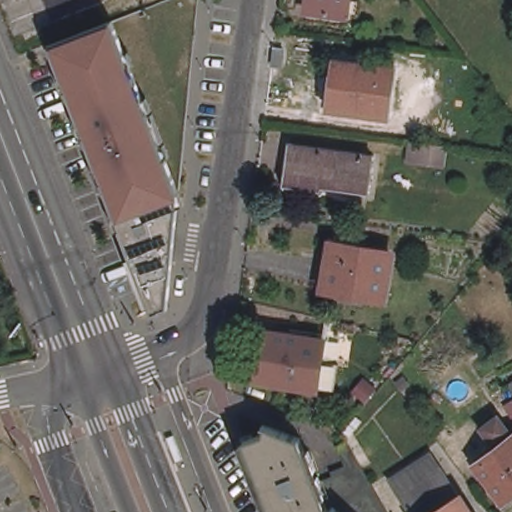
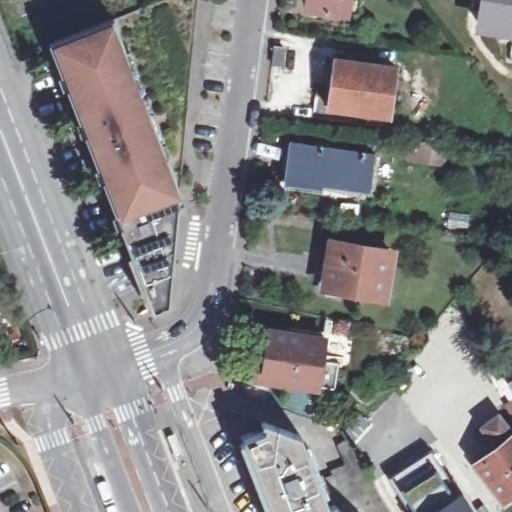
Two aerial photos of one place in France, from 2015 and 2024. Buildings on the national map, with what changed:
unchanged [(348,16),(312,11),(313,0),(350,0),(348,16)]
new [(472,9),(474,0),(512,0),(512,31),(484,27),(487,11),(472,9)]
unchanged [(150,311),(50,47),(109,24),(178,198),(167,306),(150,311)]
unchanged [(395,67),(389,117),(329,108),(336,59),(395,67)]
unchanged [(445,165),(416,161),(410,160),(411,140),(419,141),(447,145),(445,165)]
unchanged [(375,155),(370,190),(287,178),(291,143),(375,155)]
unchanged [(392,250),(385,295),(327,285),(334,241),(392,250)]
unchanged [(320,339),(317,360),(334,363),(330,390),(313,387),(312,389),(250,379),(252,360),(254,350),(262,351),(265,330),(320,339)]
unchanged [(509,383),(512,381),(512,389),(509,383)]
unchanged [(501,447),(498,444),(494,447),(480,427),(498,413),(512,431),(512,433),(510,435),(512,438),(512,492),(504,499),(477,464),(501,447)]
unchanged [(370,512),(368,511),(367,512),(274,512),(245,439),(264,433),(267,425),(300,437),(318,483),(335,477),(334,472),(347,467),(340,444),(347,439),(390,512),(370,512)]
unchanged [(462,496),(473,512),(412,512),(390,479),(432,452),(462,496)]

